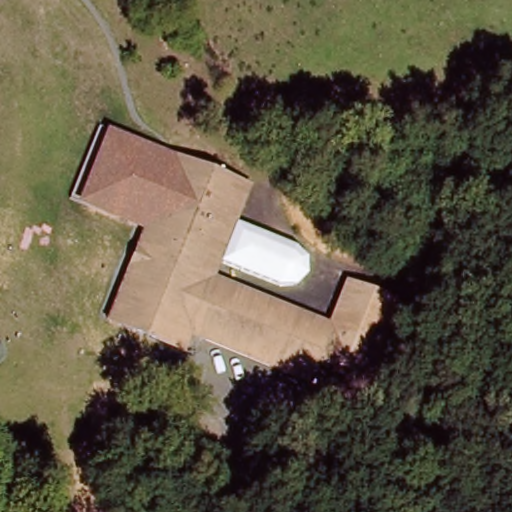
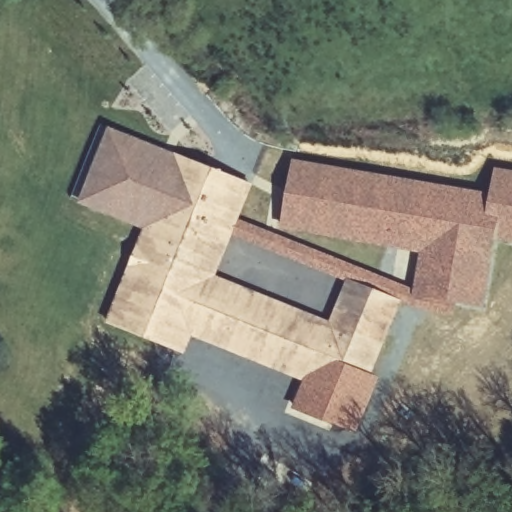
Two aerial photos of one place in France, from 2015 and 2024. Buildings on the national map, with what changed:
unchanged [(146,230),(78,203),(108,127),(177,152),(146,230)]
unchanged [(256,181),(220,276),(195,336),(187,354),(110,321),(177,152),(256,181)]
new [(496,239),(487,307),(414,296),(421,254),(283,228),(290,159),(489,194),(494,168),(512,171),(512,242),(496,239)]
unchanged [(357,284),(407,306),(373,386),(323,365),(312,387),(195,336),(220,276),(338,328),(357,284)]

